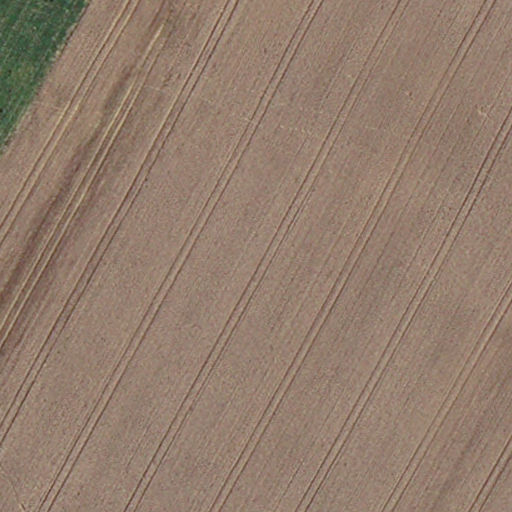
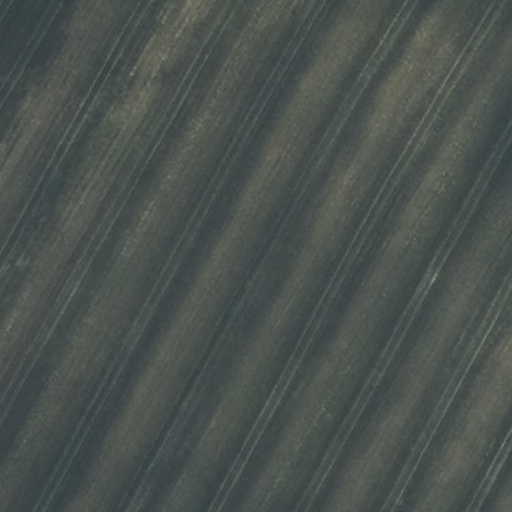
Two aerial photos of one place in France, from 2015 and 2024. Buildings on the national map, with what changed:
[]

